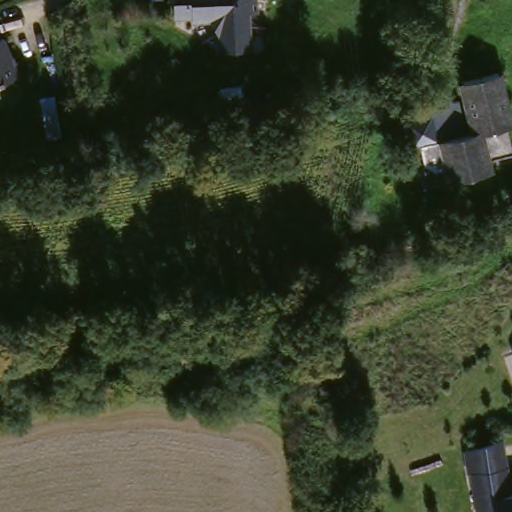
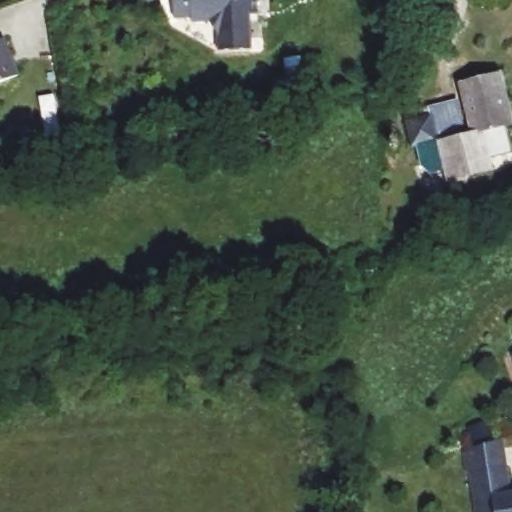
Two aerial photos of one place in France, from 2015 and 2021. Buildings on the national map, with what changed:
unchanged [(256,15),(247,16),(249,51),(216,52),(216,37),(208,22),(190,24),(190,20),(173,21),(172,0),(255,0),(256,15)]
unchanged [(0,85),(0,34),(2,41),(6,40),(20,77),(0,85)]
unchanged [(496,74),(509,125),(504,127),(511,155),(491,160),(493,170),(461,178),(448,171),(434,174),(423,167),(417,149),(411,150),(404,125),(429,118),(437,144),(472,135),(459,83),(496,74)]
unchanged [(477,495),(473,475),(466,476),(462,453),(496,442),(498,441),(499,446),(509,495),(512,494),(512,512),(477,512),(473,495),(477,495)]

